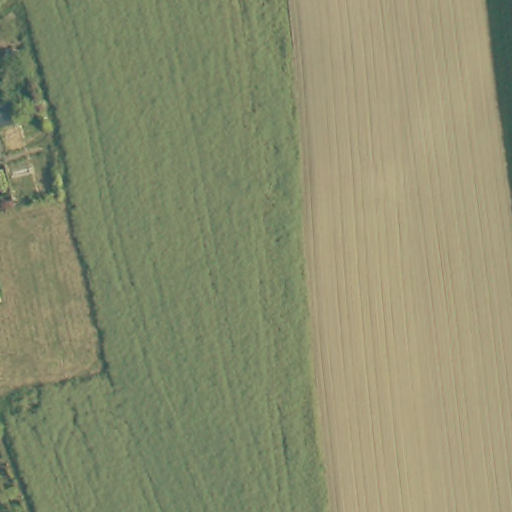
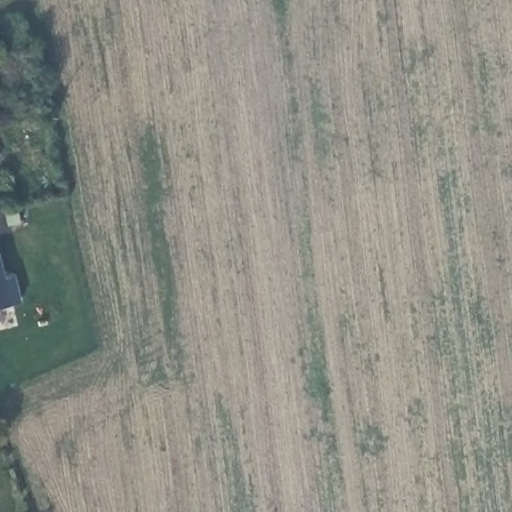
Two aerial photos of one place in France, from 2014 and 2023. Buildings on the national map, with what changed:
new [(0,277),(11,275),(18,302),(6,305),(0,307),(0,277)]

